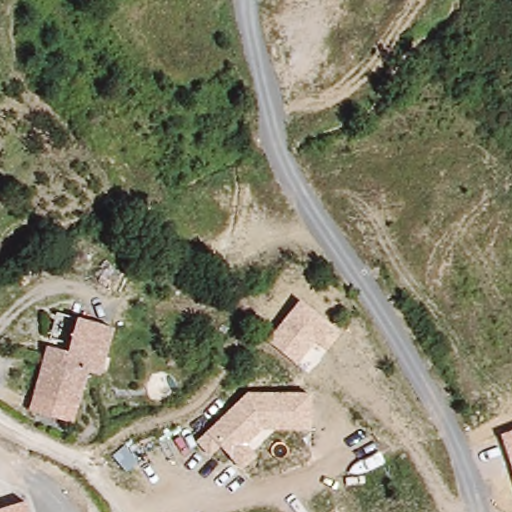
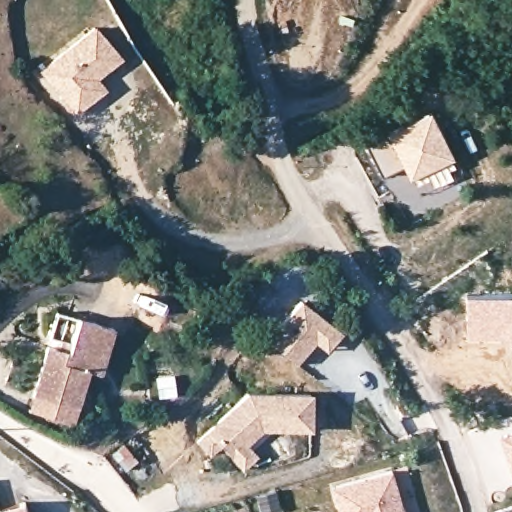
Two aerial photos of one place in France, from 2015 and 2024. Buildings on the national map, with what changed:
new [(40,72),(94,26),(121,60),(97,80),(105,89),(77,116),(40,72)]
new [(367,145),(390,136),(388,132),(432,111),(455,157),(410,177),(404,166),(382,176),(367,145)]
new [(512,292),(512,337),(467,338),(465,293),(512,292)]
unchanged [(340,332),(327,352),(315,345),(299,365),(267,342),(300,302),(340,332)]
unchanged [(50,310),(114,331),(100,377),(88,372),(72,427),(29,415),(50,346),(60,350),(63,337),(44,330),(50,310)]
unchanged [(312,430),(260,432),(247,447),(256,457),(242,471),(220,447),(210,457),(195,442),(245,395),(312,394),(312,430)]
unchanged [(512,431),(512,471),(500,436),(512,431)]
new [(329,493),(387,475),(400,512),(354,512),(352,508),(354,512),(334,512),(329,493)]
new [(275,490),(280,507),(265,512),(262,512),(257,495),(275,490)]
unchanged [(25,512),(0,512),(0,509),(22,502),(25,512)]

